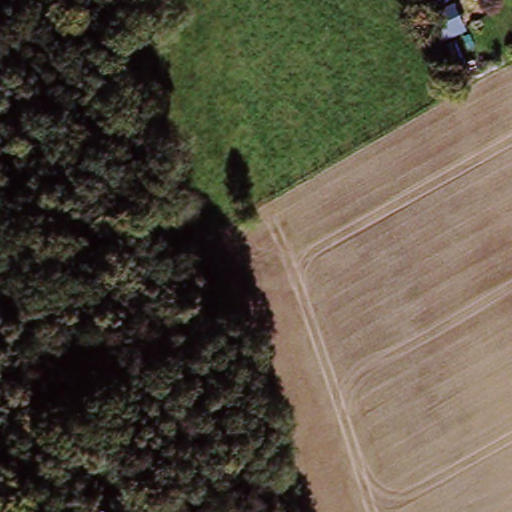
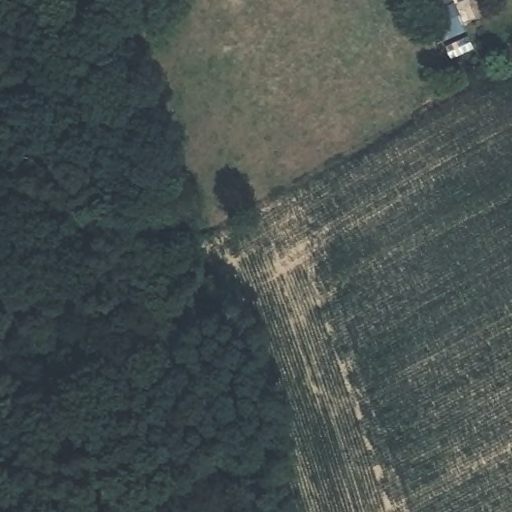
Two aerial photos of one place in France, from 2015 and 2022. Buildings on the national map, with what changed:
unchanged [(465,30),(439,42),(422,0),(452,0),(465,30)]

